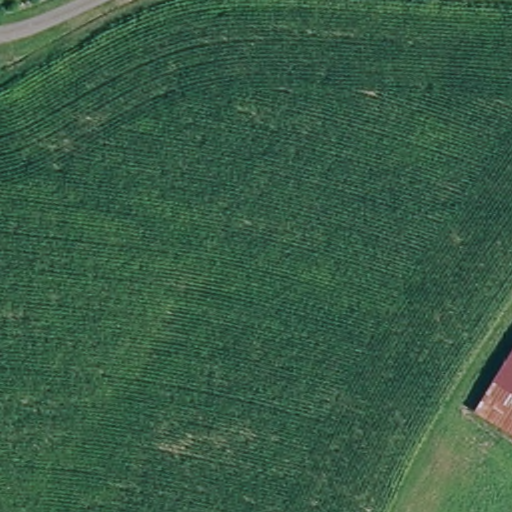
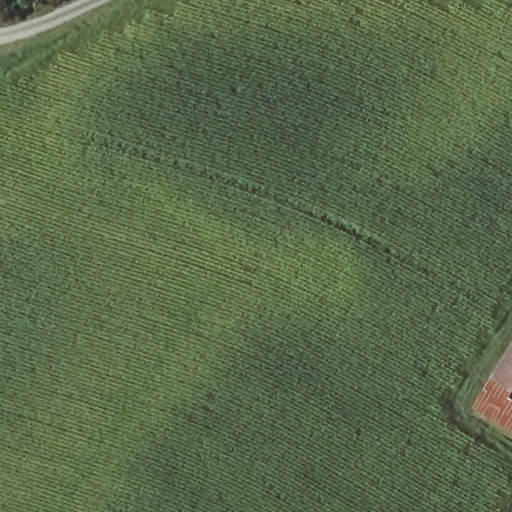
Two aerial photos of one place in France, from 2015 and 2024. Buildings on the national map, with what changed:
unchanged [(512,367),(512,431),(483,414),(512,367)]

